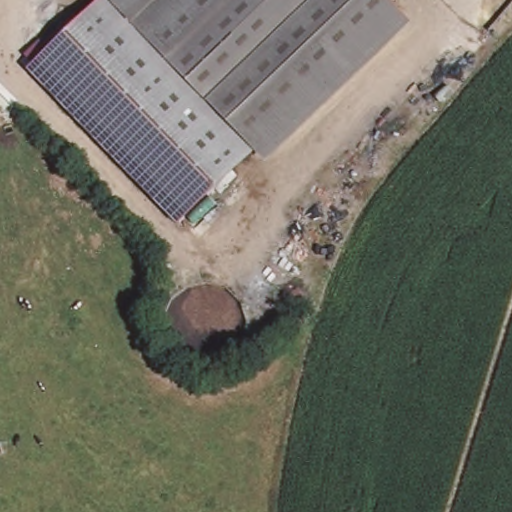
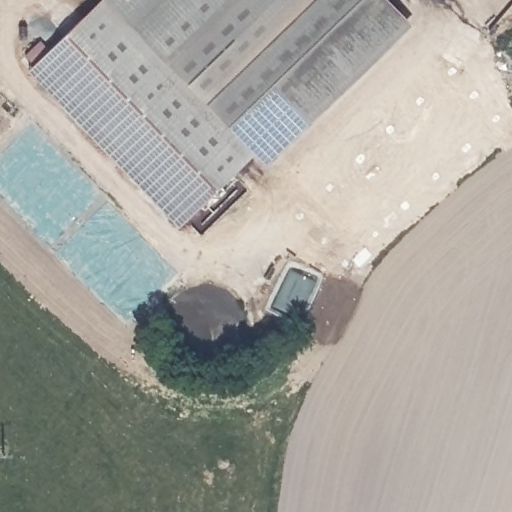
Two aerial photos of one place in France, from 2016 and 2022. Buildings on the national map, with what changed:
unchanged [(263,167),(253,155),(175,229),(23,75),(99,0),(312,0),(313,1),(314,0),(379,0),(409,30),(263,167)]

